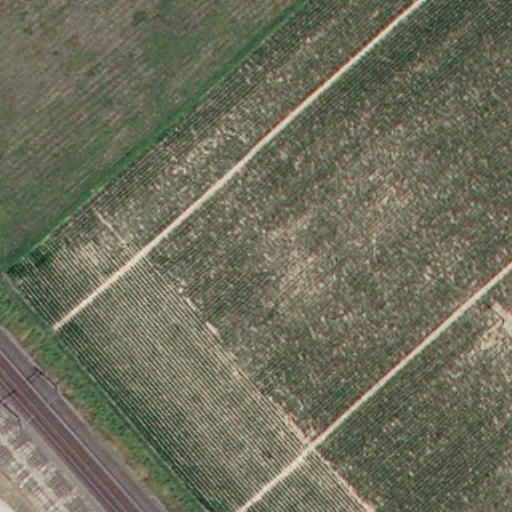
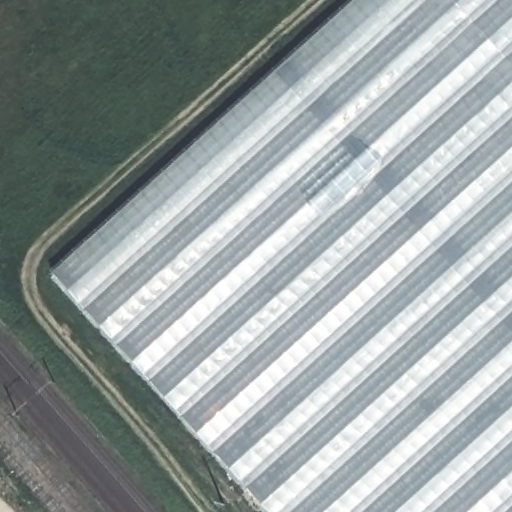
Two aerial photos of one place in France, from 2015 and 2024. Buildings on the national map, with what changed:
new [(355,0),(512,0),(512,512),(271,512),(54,272),(355,0)]

